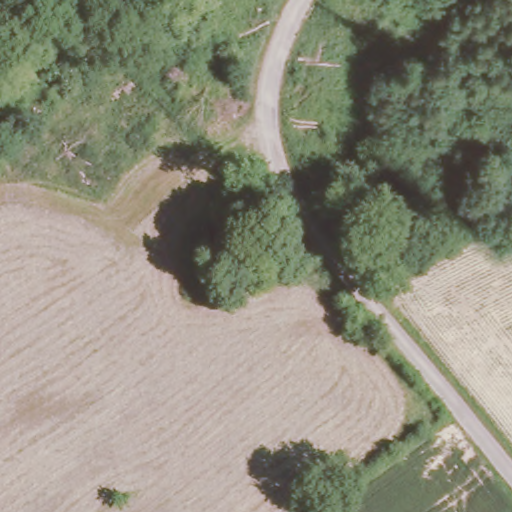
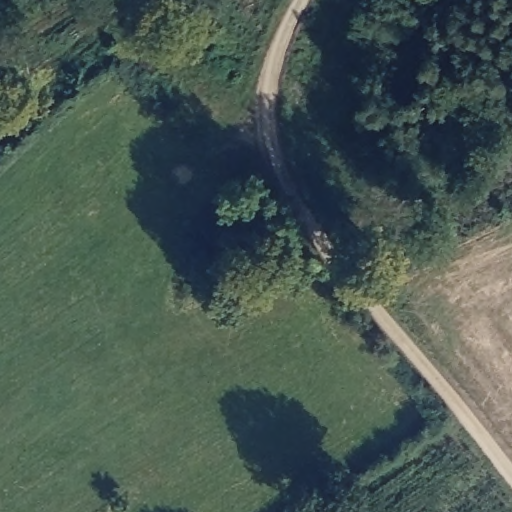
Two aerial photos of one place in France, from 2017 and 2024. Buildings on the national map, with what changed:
unchanged [(445,134),(431,101),(447,94),(461,128),(445,134)]

